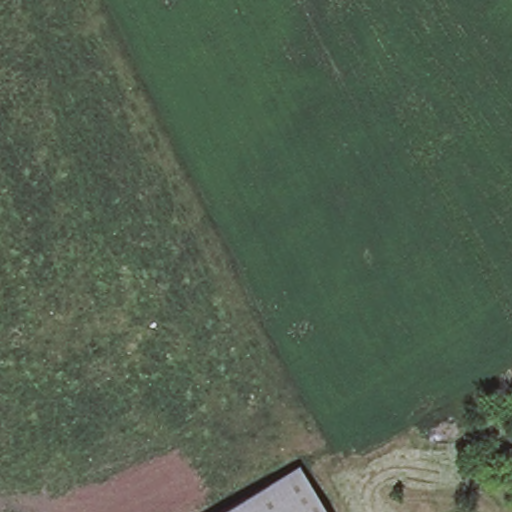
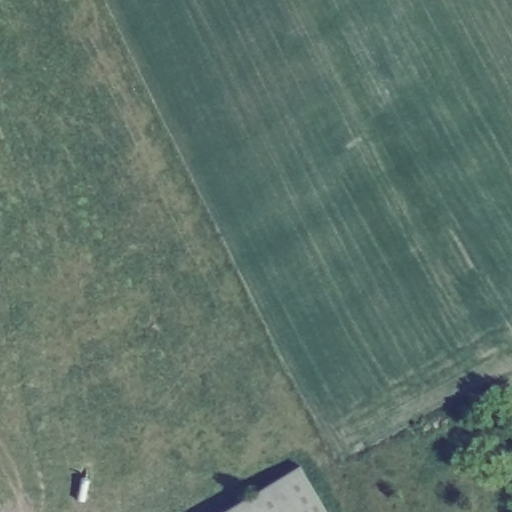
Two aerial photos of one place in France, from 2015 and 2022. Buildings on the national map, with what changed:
unchanged [(298,467),(325,512),(222,512),(298,467)]

